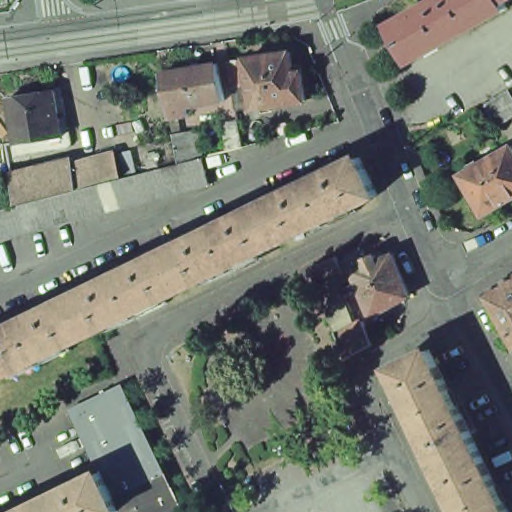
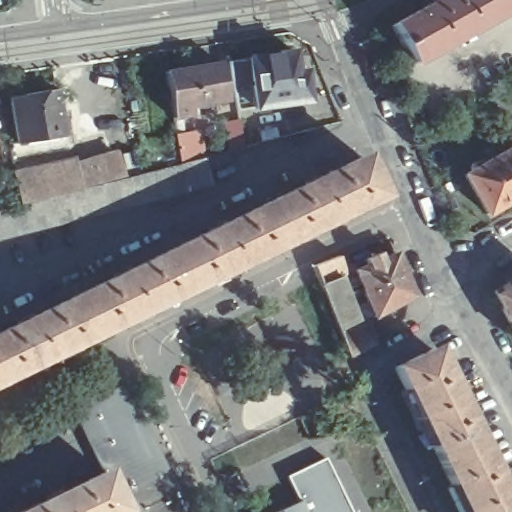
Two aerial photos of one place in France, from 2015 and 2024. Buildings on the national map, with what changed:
unchanged [(411,64),(390,26),(433,2),(432,0),(505,0),(510,0),(506,2),(510,9),(411,64)]
unchanged [(253,59),(297,52),(300,74),(308,72),(312,101),(303,102),(260,108),(242,111),(238,86),(234,61),(253,59)]
unchanged [(196,114),(183,116),(177,117),(176,113),(170,73),(223,64),(230,101),(195,106),(196,114)]
unchanged [(499,127),(486,105),(511,89),(512,91),(512,120),(499,127)]
unchanged [(26,155),(10,158),(8,145),(17,143),(10,99),(56,91),(64,136),(25,143),(26,155)]
unchanged [(239,123),(243,146),(228,149),(223,125),(238,121),(239,123)]
unchanged [(85,190),(128,179),(185,164),(182,149),(180,134),(190,132),(204,130),(209,157),(216,185),(0,240),(0,212),(24,205),(85,190)]
unchanged [(512,147),(512,199),(487,214),(465,175),(512,147)]
unchanged [(122,155),(128,179),(85,190),(24,205),(18,176),(79,160),(80,165),(122,155)]
unchanged [(375,195),(278,242),(260,204),(356,157),(375,195)]
unchanged [(278,242),(182,288),(164,250),(260,204),(278,242)]
unchanged [(182,288),(87,335),(69,297),(164,250),(182,288)]
unchanged [(404,275),(412,295),(373,317),(355,271),(367,265),(365,260),(377,254),(380,260),(395,254),(404,275)]
unchanged [(312,266),(338,256),(345,275),(340,276),(358,325),(365,321),(375,345),(347,358),(338,335),(320,285),(312,266)]
unchanged [(492,292),(512,281),(512,328),(492,292)]
unchanged [(87,335),(0,377),(0,331),(69,297),(87,335)]
unchanged [(436,350),(483,445),(446,465),(399,368),(436,349),(436,350)]
unchanged [(110,476),(108,472),(97,450),(91,437),(78,410),(123,388),(136,415),(155,455),(110,476)]
unchanged [(512,504),(512,512),(469,512),(446,465),(483,445),(512,504)]
unchanged [(126,510),(117,491),(110,476),(155,455),(162,470),(183,512),(128,512),(126,510)]
new [(297,502),(287,477),(325,458),(350,512),(277,512),(297,502)]
unchanged [(110,476),(117,491),(126,510),(122,512),(26,512),(108,472),(110,476)]

